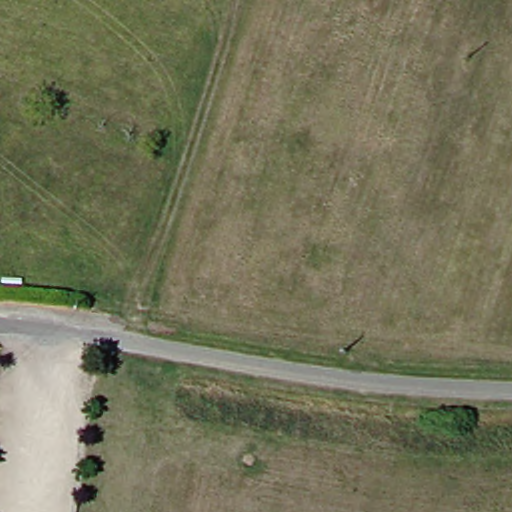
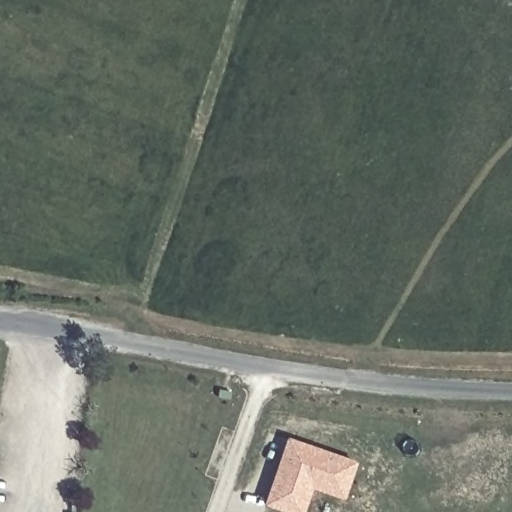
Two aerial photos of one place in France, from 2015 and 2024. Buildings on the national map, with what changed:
unchanged [(368,347),(358,344),(361,332),(371,335),(368,347)]
new [(313,490),(305,512),(281,512),(264,506),(290,439),(358,462),(344,499),(313,490)]

